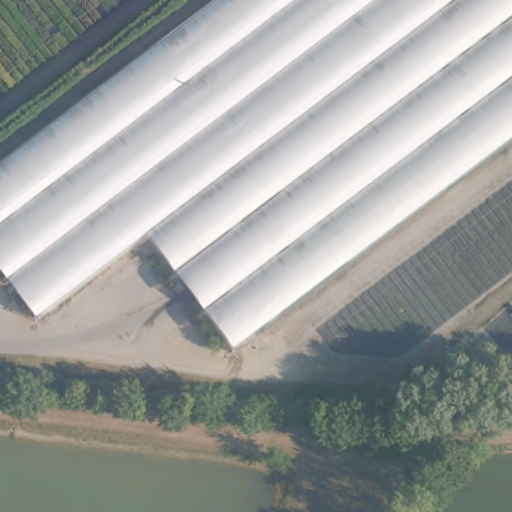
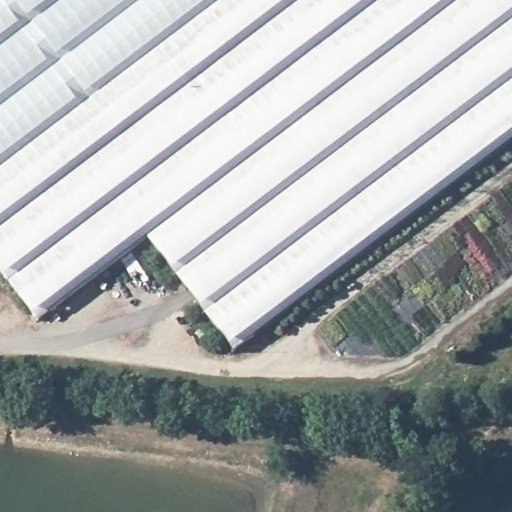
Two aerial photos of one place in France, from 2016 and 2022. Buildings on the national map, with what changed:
new [(221,0),(0,167),(0,0),(221,0)]
unchanged [(457,0),(149,237),(39,322),(0,271),(0,167),(221,0),(457,0)]
unchanged [(149,237),(457,0),(512,0),(512,142),(235,352),(149,237)]

